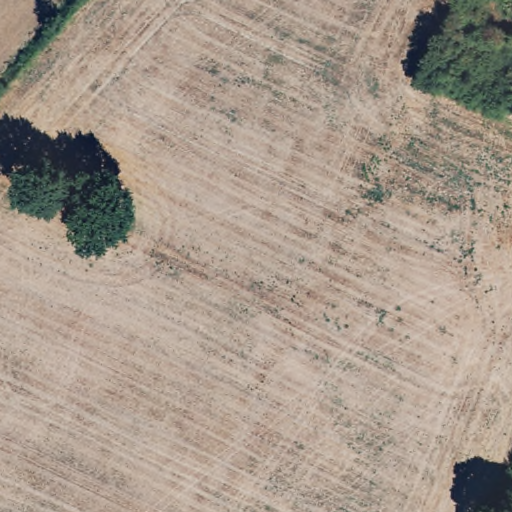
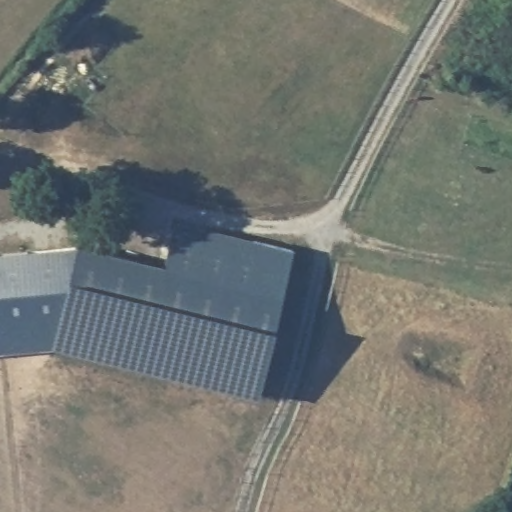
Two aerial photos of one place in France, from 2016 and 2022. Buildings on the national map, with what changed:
new [(77,246),(164,266),(175,221),(293,249),(257,396),(52,347),(0,352),(0,253),(77,246)]

